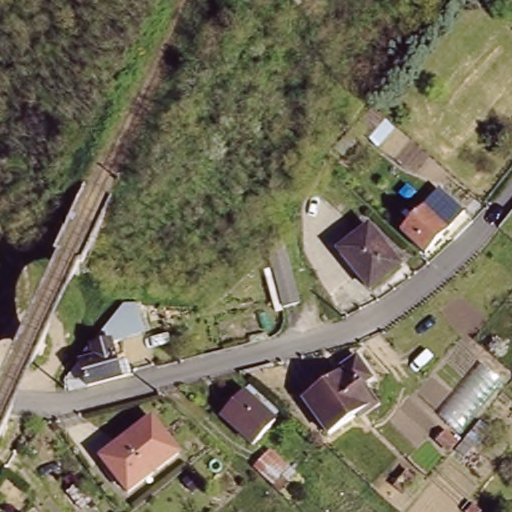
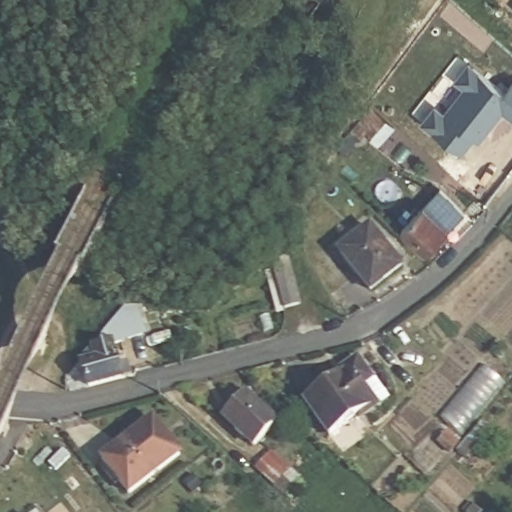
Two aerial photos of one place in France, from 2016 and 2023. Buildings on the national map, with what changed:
new [(504,113),(480,141),(474,138),(464,154),(423,124),(437,105),(446,111),(466,87),(457,80),(471,61),(509,91),(512,87),(512,119),(504,113)]
unchanged [(395,127),(379,144),(363,130),(377,111),(395,127)]
unchanged [(465,209),(427,248),(402,225),(439,186),(465,209)]
unchanged [(366,282),(339,249),(369,226),(401,265),(384,279),(371,289),(366,282)]
unchanged [(298,304),(284,307),(269,252),(279,239),(298,304)]
unchanged [(133,313),(113,340),(123,377),(87,385),(81,362),(95,359),(92,345),(102,332),(103,330),(123,305),(133,313)]
unchanged [(373,377),(362,385),(375,403),(332,435),(306,398),(359,359),(373,377)]
unchanged [(281,417),(259,440),(227,411),(248,388),(281,417)]
unchanged [(184,448),(135,488),(108,455),(157,415),(184,448)]
unchanged [(464,436),(473,443),(463,456),(454,449),(464,436)]
unchanged [(299,478),(282,494),(253,466),(270,450),(299,478)]
unchanged [(69,493),(88,478),(94,486),(94,500),(81,510),(80,508),(69,493)]

